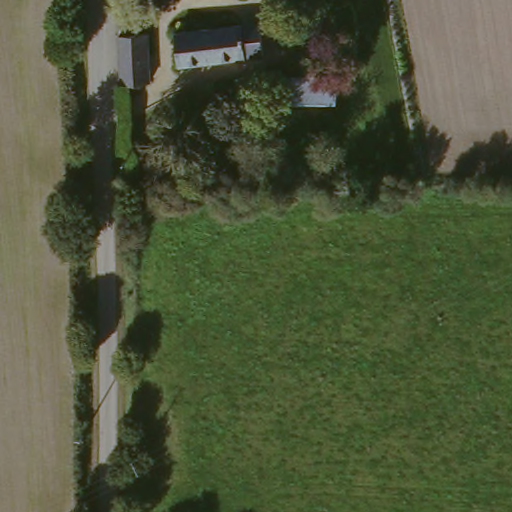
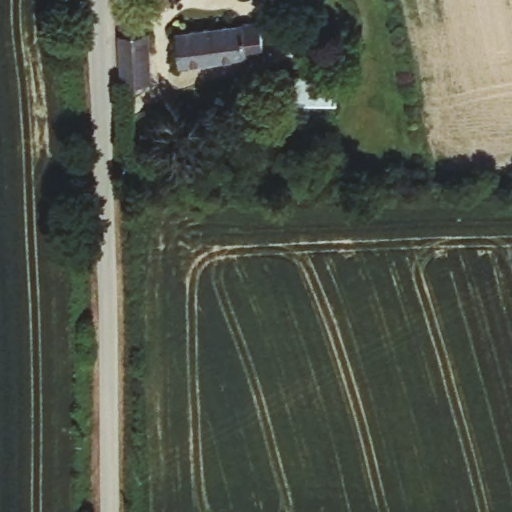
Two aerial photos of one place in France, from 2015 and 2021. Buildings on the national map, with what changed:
unchanged [(239,50),(189,63),(182,29),(258,10),(266,43),(258,44),(239,50)]
unchanged [(120,35),(152,35),(156,89),(126,89),(120,35)]
unchanged [(346,97),(293,103),(286,74),(340,67),(346,97)]

